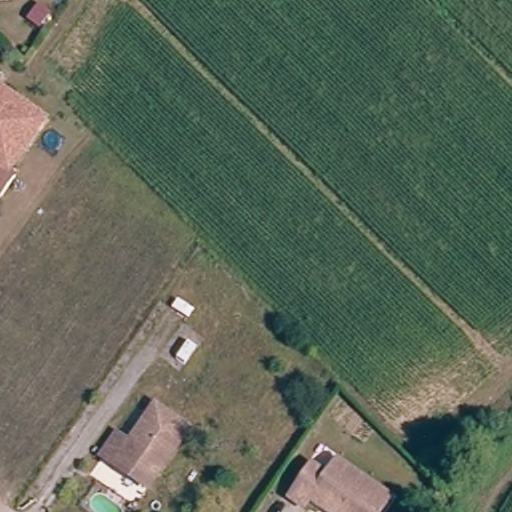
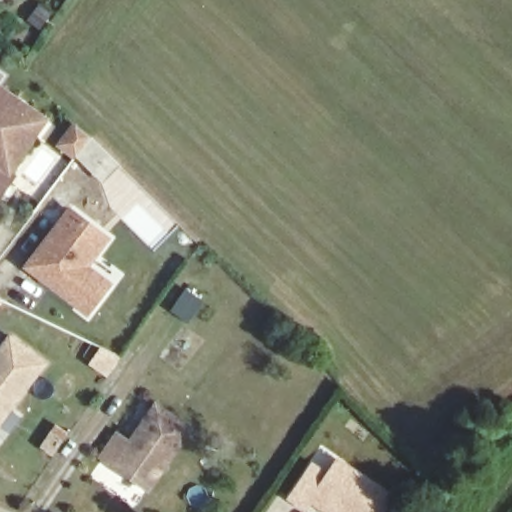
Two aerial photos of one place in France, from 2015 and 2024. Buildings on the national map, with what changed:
unchanged [(12,172),(18,176),(5,197),(0,194),(0,86),(47,117),(12,172)]
new [(88,315),(24,268),(69,207),(112,239),(91,267),(114,284),(88,315)]
new [(0,348),(9,335),(48,362),(0,426),(0,348)]
unchanged [(117,467),(103,457),(119,433),(131,442),(157,405),(191,429),(152,486),(150,489),(117,467)]
unchanged [(312,503),(296,492),(318,460),(333,470),(343,455),(397,493),(385,512),(342,512),(317,495),(312,503)]

